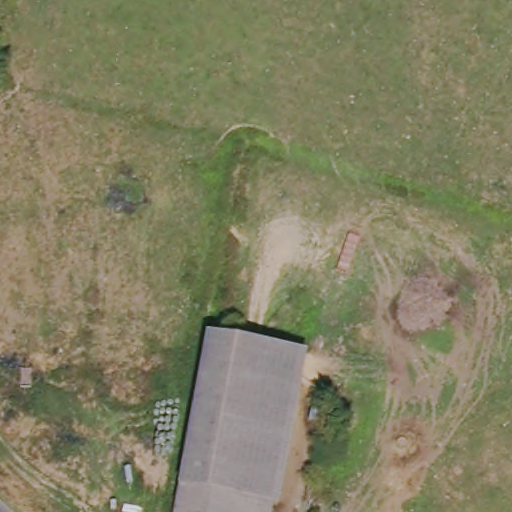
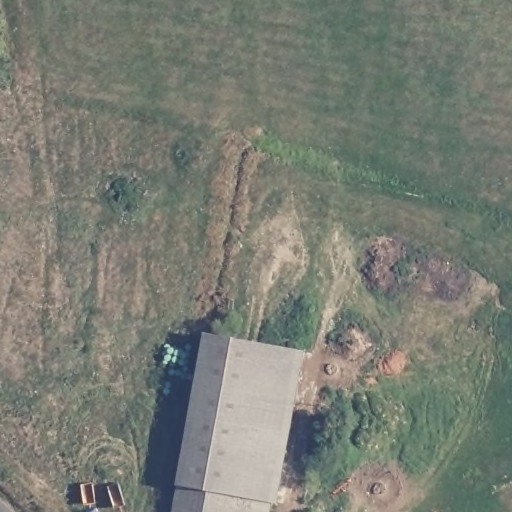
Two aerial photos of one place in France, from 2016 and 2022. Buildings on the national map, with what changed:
unchanged [(300,355),(276,502),(270,501),(268,512),(174,512),(206,340),(300,355)]

